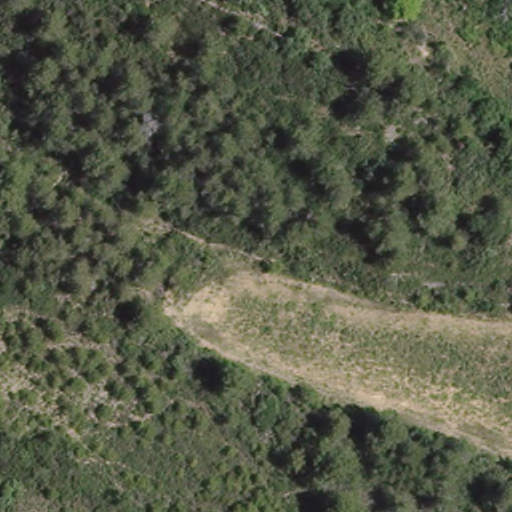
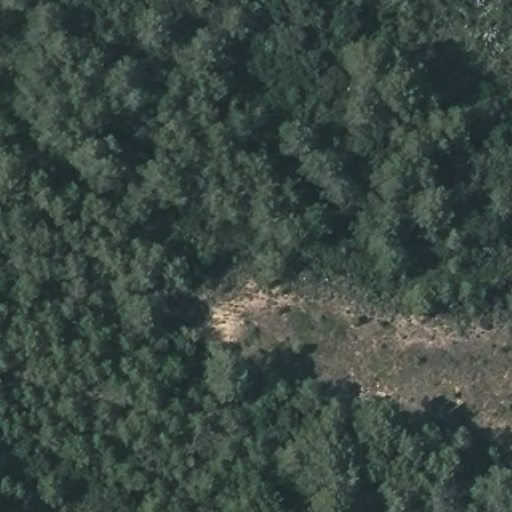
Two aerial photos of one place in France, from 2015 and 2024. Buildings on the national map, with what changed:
[]

